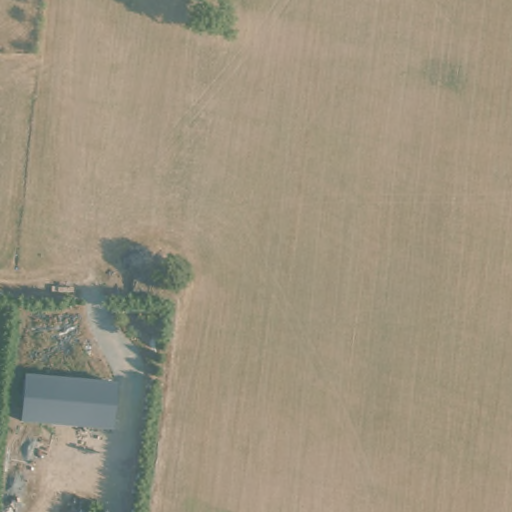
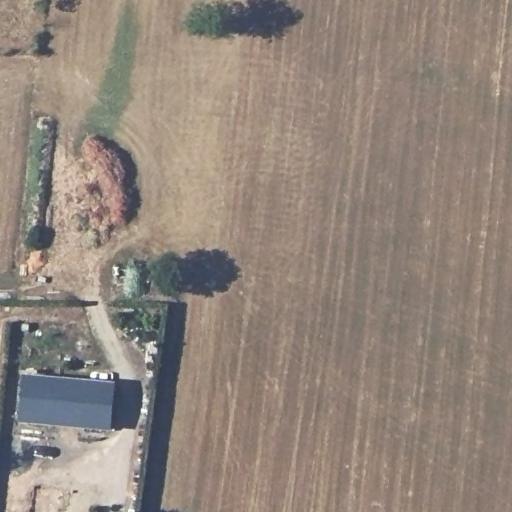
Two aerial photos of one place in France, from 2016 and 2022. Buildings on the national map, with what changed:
unchanged [(116,383),(112,430),(19,422),(24,373),(116,383)]

